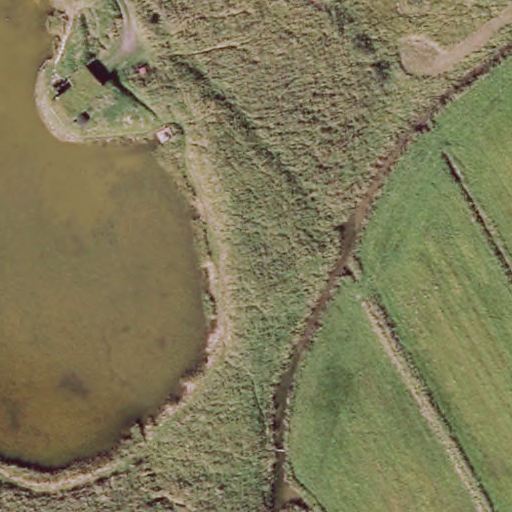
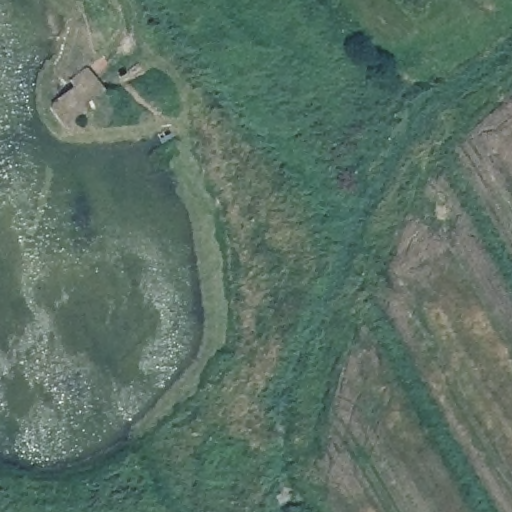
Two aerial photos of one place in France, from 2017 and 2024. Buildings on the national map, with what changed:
unchanged [(87,70),(106,97),(90,109),(95,116),(70,131),(54,107),(76,94),(69,82),(87,70)]

